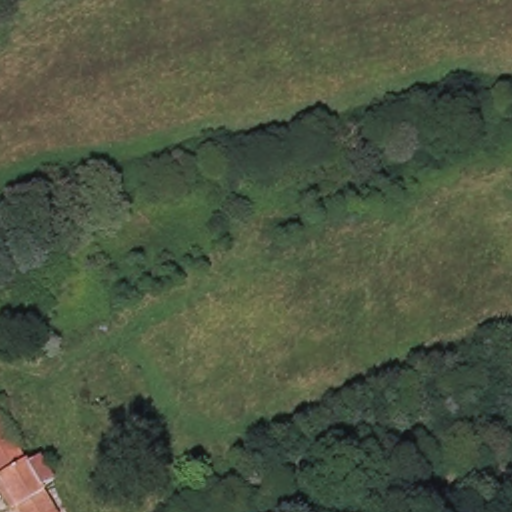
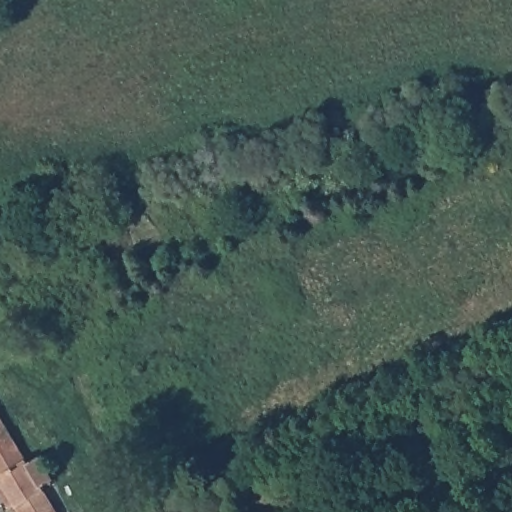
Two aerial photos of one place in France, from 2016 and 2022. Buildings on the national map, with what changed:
unchanged [(38,458),(52,480),(39,488),(54,512),(18,512),(0,485),(0,426),(25,466),(38,458)]

